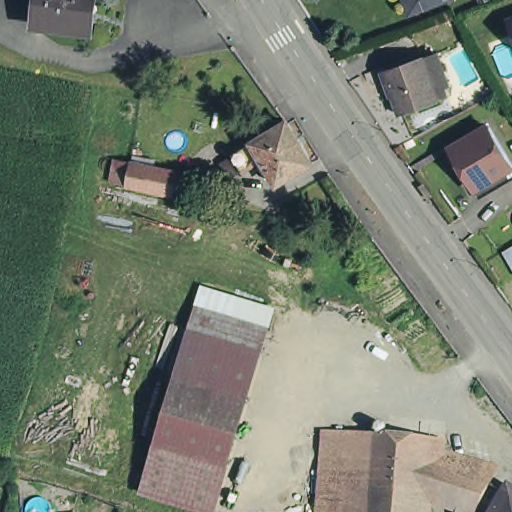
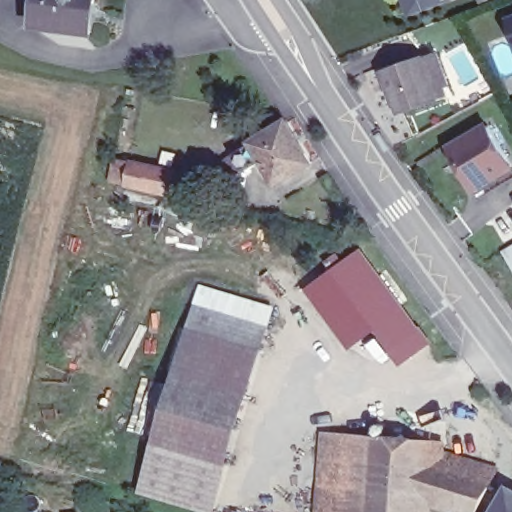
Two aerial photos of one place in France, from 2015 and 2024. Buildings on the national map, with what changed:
unchanged [(86,7),(83,36),(36,31),(40,0),(98,0),(97,8),(86,7)]
unchanged [(378,72),(417,57),(432,52),(447,96),(434,101),(394,115),(378,72)]
unchanged [(264,169),(251,177),(240,160),(260,147),(294,126),(319,167),(286,188),(283,184),(276,187),(264,169)]
unchanged [(512,163),(512,171),(477,192),(454,154),(493,131),(512,163)]
unchanged [(109,182),(109,180),(113,160),(136,165),(186,175),(181,196),(181,199),(131,187),(109,182)]
new [(361,252),(419,330),(391,351),(378,332),(334,272),(361,252)]
unchanged [(512,252),(512,266),(506,256),(512,252)]
new [(353,349),(309,290),(334,272),(378,332),(353,349)]
unchanged [(139,481),(203,291),(279,311),(223,506),(139,481)]
unchanged [(325,420),(349,421),(341,512),(317,512),(325,420)]
unchanged [(497,506),(483,498),(475,512),(463,512),(466,507),(417,492),(416,492),(367,489),(365,512),(341,512),(349,421),(349,420),(441,442),(438,452),(464,460),(492,467),(489,484),(504,492),(508,487),(512,490),(512,512),(493,512),(497,506)]
unchanged [(367,489),(416,492),(417,492),(415,512),(365,512),(367,489)]

